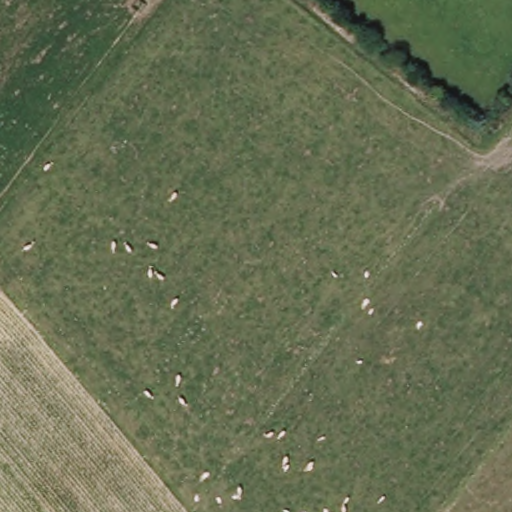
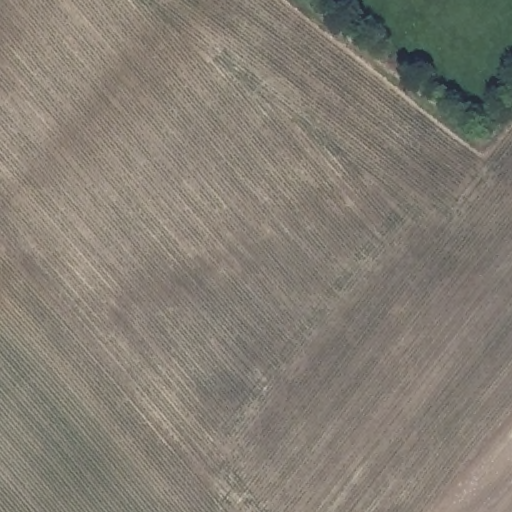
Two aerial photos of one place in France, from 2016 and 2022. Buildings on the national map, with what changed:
[]

